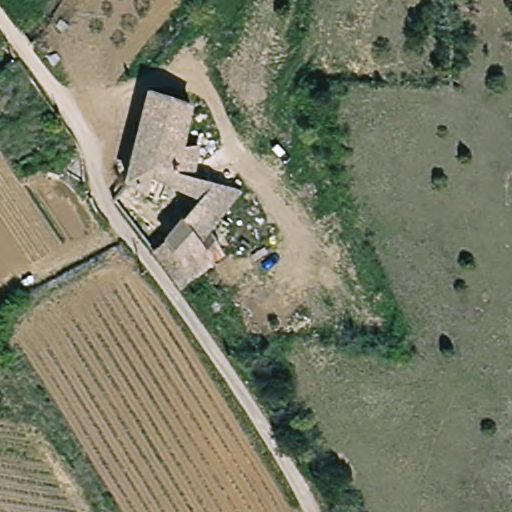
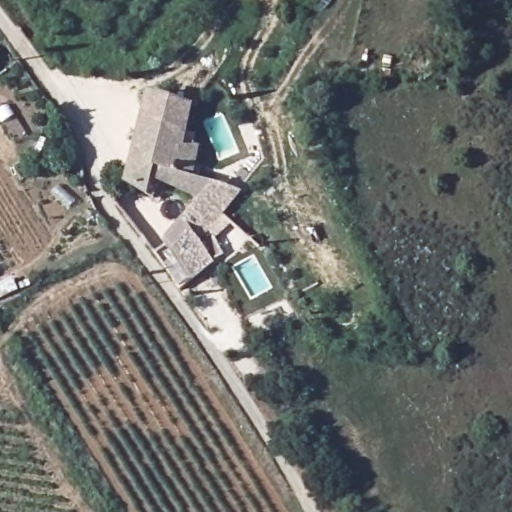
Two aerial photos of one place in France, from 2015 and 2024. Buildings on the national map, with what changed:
unchanged [(214,240),(218,247),(186,286),(160,255),(188,212),(181,206),(187,200),(164,187),(156,199),(121,184),(144,93),(186,102),(177,140),(195,146),(188,177),(236,189),(217,212),(229,222),(214,240)]

